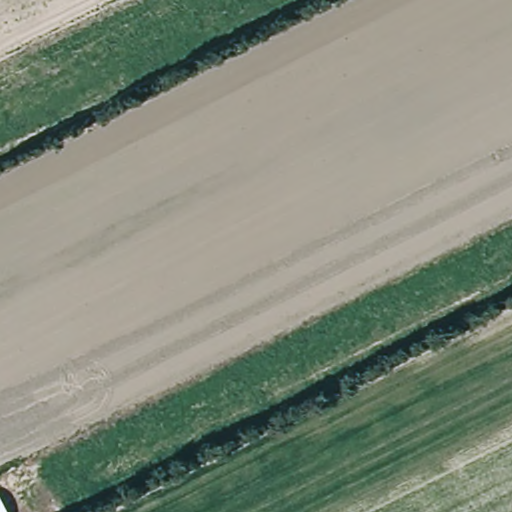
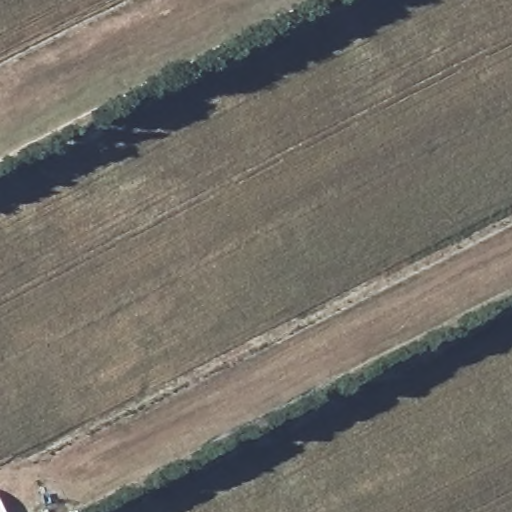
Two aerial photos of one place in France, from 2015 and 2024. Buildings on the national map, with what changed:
unchanged [(4,512),(0,512),(0,505),(4,512)]

